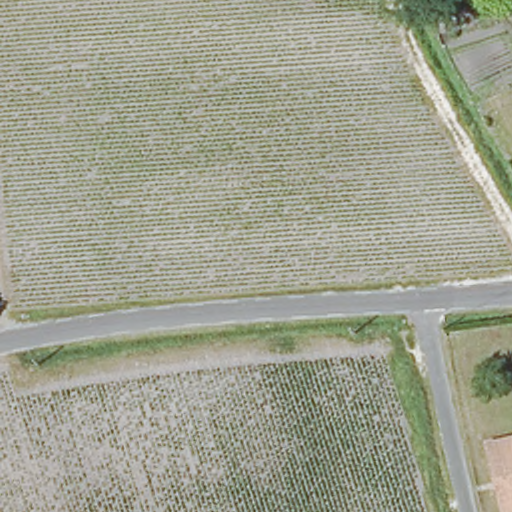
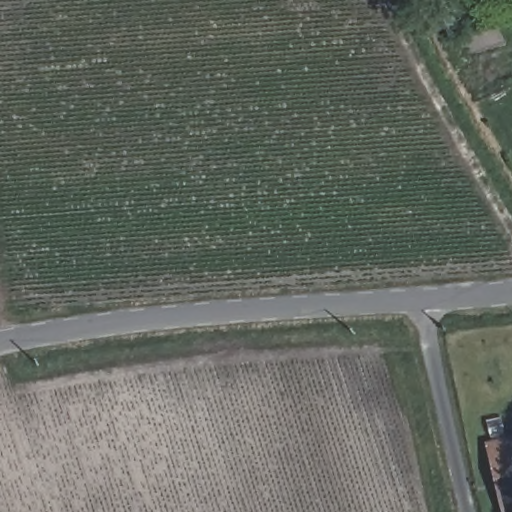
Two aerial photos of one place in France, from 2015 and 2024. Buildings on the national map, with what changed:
unchanged [(512,441),(512,512),(506,512),(486,448),(512,441)]

